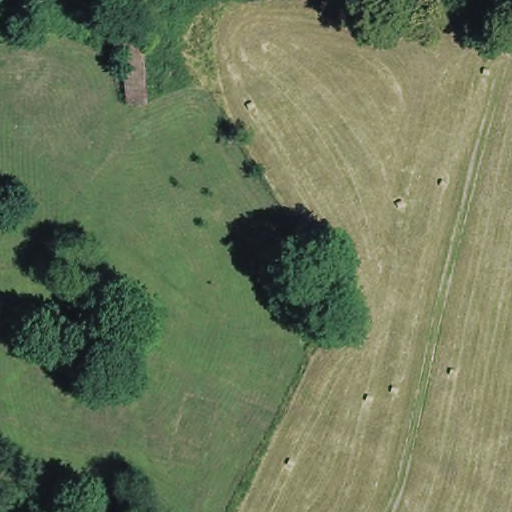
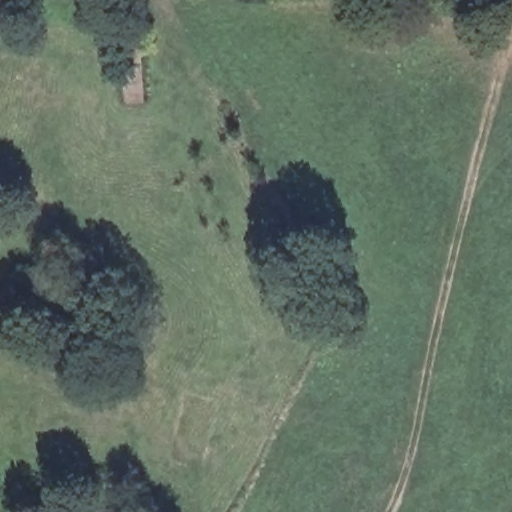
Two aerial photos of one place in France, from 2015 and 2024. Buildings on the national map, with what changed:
unchanged [(115,0),(143,0),(144,12),(150,100),(123,103),(115,0)]

